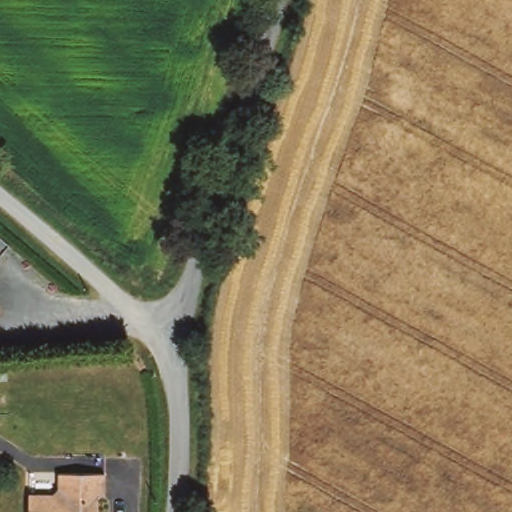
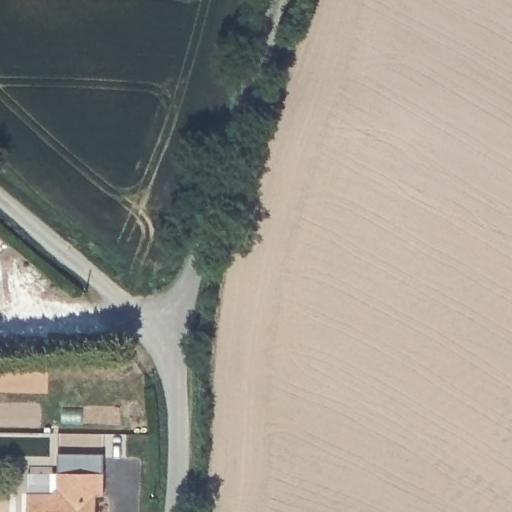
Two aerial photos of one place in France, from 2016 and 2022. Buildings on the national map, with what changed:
unchanged [(29,498),(54,498),(59,493),(59,477),(105,478),(105,501),(97,500),(97,512),(29,512),(29,498)]

